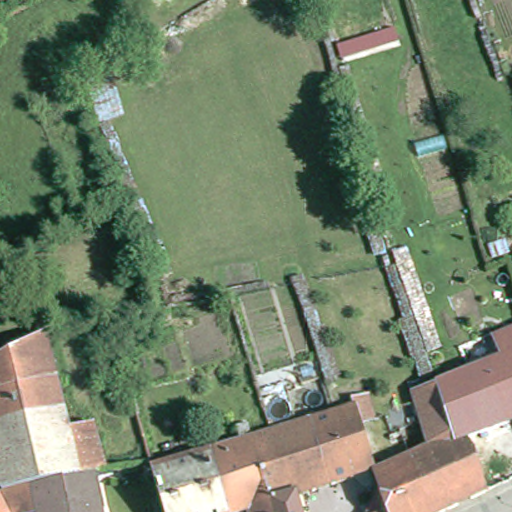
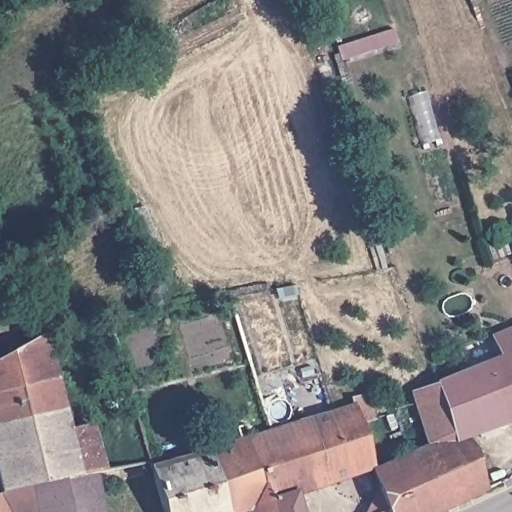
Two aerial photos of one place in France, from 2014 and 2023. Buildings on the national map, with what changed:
unchanged [(500,343),(504,342),(512,338),(512,423),(512,424),(512,429),(472,443),(460,447),(458,440),(457,439),(441,390),(445,388),(450,386),(467,379),(472,376),(464,352),(462,349),(456,334),(452,323),(459,321),(465,318),(465,319),(472,340),(474,342),(475,346),(475,347),(497,338),(500,343)]
unchanged [(76,434),(99,429),(111,474),(101,476),(9,496),(0,461),(0,365),(51,338),(76,434)]
unchanged [(94,373),(109,369),(112,381),(97,385),(94,373)]
unchanged [(260,441),(278,436),(333,419),(359,411),(357,404),(372,398),(380,422),(367,427),(378,462),(359,480),(301,500),(305,512),(169,512),(158,473),(260,441)]
unchanged [(382,473),(457,439),(458,440),(460,447),(472,443),(477,450),(479,456),(480,458),(481,461),(492,495),(455,512),(392,512),(378,475),(382,473)]
unchanged [(9,496),(101,476),(108,512),(0,512),(0,499),(6,498),(9,496)]

